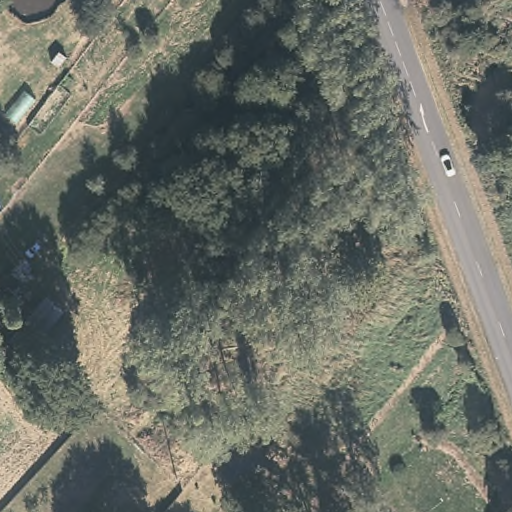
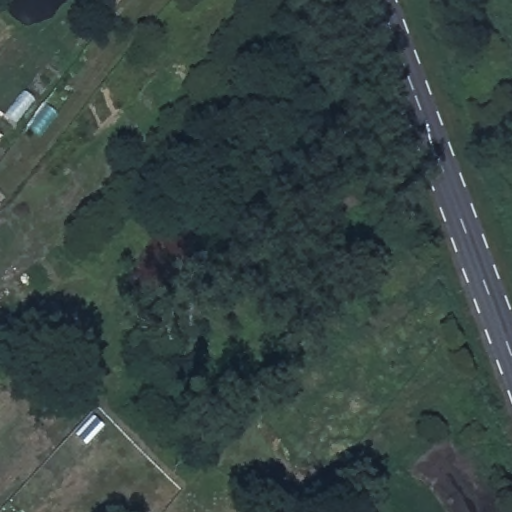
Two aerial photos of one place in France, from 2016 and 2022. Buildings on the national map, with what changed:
unchanged [(14,365),(0,350),(0,348),(5,344),(20,360),(14,365)]

